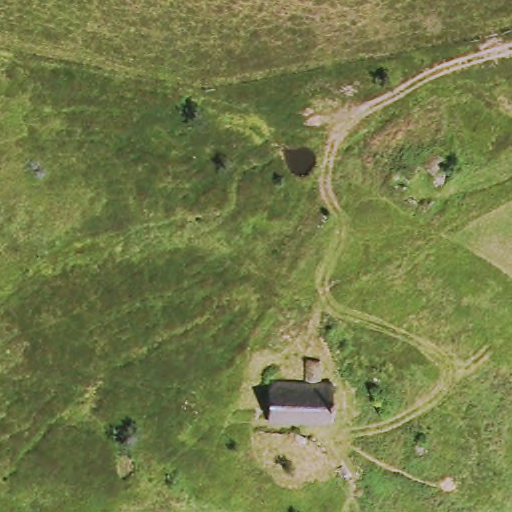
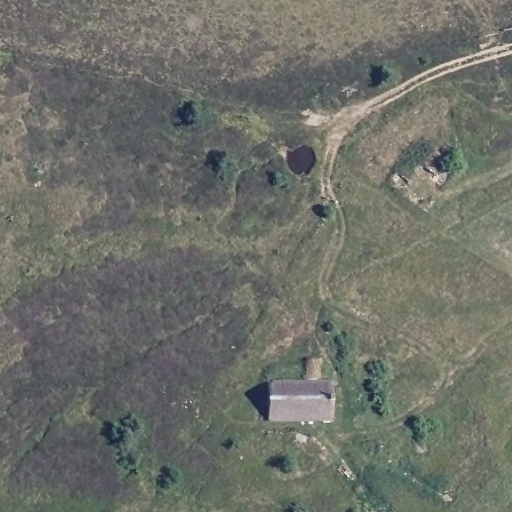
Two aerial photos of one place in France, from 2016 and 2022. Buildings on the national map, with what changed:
unchanged [(265,424),(264,380),(301,381),(301,358),(318,359),(317,382),(331,382),(327,423),(265,424)]

